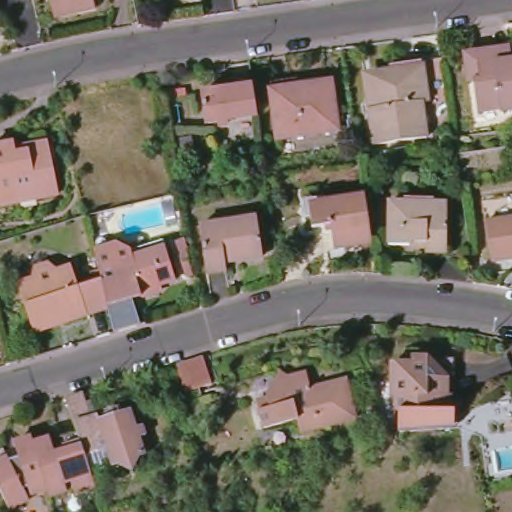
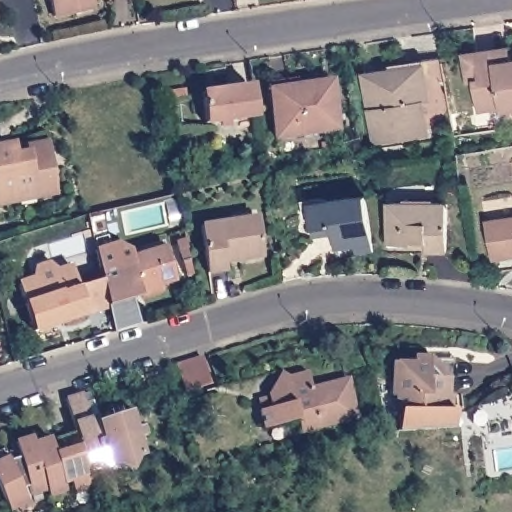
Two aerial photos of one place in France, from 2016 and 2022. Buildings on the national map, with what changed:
unchanged [(77,12),(54,17),(50,0),(94,0),(94,2),(95,7),(77,12)]
unchanged [(500,104),(478,107),(475,78),(470,78),(466,50),(479,48),(512,44),(512,49),(512,106),(501,107),(500,104)]
unchanged [(375,144),(370,109),(375,108),(370,73),(391,70),(422,66),(424,72),(428,101),(422,102),(427,136),(375,144)]
unchanged [(339,129),(277,138),(272,99),(270,90),(295,86),(332,81),(339,129)]
unchanged [(257,115),(205,123),(202,100),(215,98),(214,92),(229,90),(229,92),(254,88),(257,115)]
unchanged [(36,197),(35,193),(19,196),(20,201),(0,205),(0,146),(7,145),(8,145),(10,145),(12,146),(12,147),(14,149),(47,142),(48,148),(57,193),(36,197)]
unchanged [(372,243),(335,248),(332,225),(313,228),(310,209),(315,204),(365,196),(372,243)]
unchanged [(447,251),(427,251),(427,243),(412,243),(412,245),(390,244),(390,203),(405,203),(410,207),(429,207),(433,203),(447,203),(447,251)]
unchanged [(486,221),(512,217),(512,258),(492,260),(486,221)]
unchanged [(262,256),(239,260),(239,259),(225,261),(227,271),(207,274),(200,226),(232,221),(239,226),(258,223),(262,256)]
unchanged [(147,291),(137,294),(145,319),(119,327),(113,303),(107,274),(107,275),(102,255),(100,246),(122,239),(135,246),(137,253),(170,242),(180,275),(165,279),(167,285),(147,291)]
unchanged [(107,274),(113,303),(38,327),(23,280),(37,275),(42,267),(54,263),(62,267),(77,262),(83,282),(107,275),(107,274)]
unchanged [(454,411),(442,413),(425,414),(400,415),(399,395),(396,395),(396,381),(392,381),(392,348),(412,348),(412,342),(427,342),(447,361),(447,395),(454,395),(454,411)]
unchanged [(204,357),(212,383),(185,391),(177,365),(203,357),(204,357)]
unchanged [(267,399),(267,396),(280,374),(287,378),(307,373),(310,389),(346,380),(356,418),(300,432),(297,420),(264,429),(259,411),(257,401),(267,399)]
unchanged [(92,413),(98,411),(100,415),(130,405),(136,423),(142,421),(146,430),(134,434),(140,452),(133,466),(119,459),(113,461),(107,443),(85,451),(77,427),(67,393),(84,388),(92,413)]
unchanged [(95,481),(75,488),(71,476),(64,478),(67,485),(50,491),(47,485),(34,439),(50,433),(53,442),(59,441),(56,433),(77,427),(85,451),(95,481)]
unchanged [(47,485),(32,490),(29,482),(23,483),(28,494),(9,504),(0,485),(0,447),(5,445),(6,449),(17,445),(14,438),(32,432),(34,439),(47,485)]

